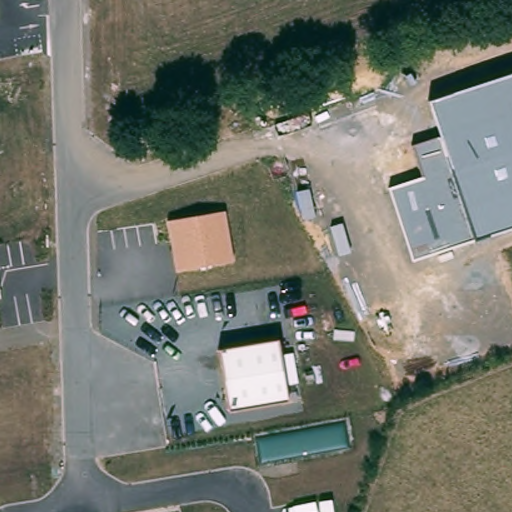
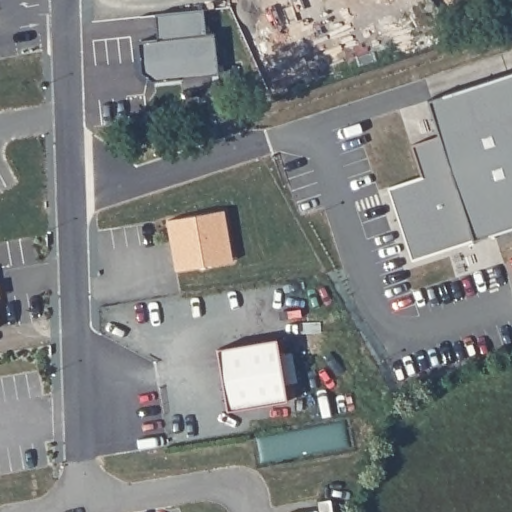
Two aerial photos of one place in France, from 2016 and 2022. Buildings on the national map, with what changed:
new [(158,40),(155,16),(204,11),(207,34),(214,33),(219,75),(153,83),(142,74),(139,42),(158,40)]
unchanged [(389,188),(423,177),(413,145),(440,137),(429,101),(512,73),(512,228),(474,240),(412,261),(389,188)]
unchanged [(166,220),(224,211),(232,262),(174,270),(166,220)]
unchanged [(218,350),(278,340),(280,355),(294,353),(298,384),(285,386),(288,401),(227,410),(218,350)]

